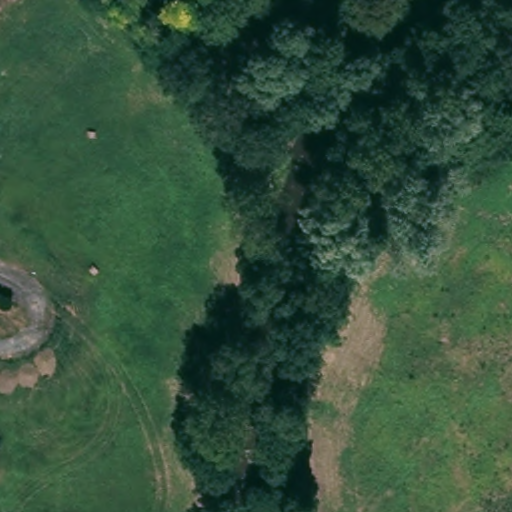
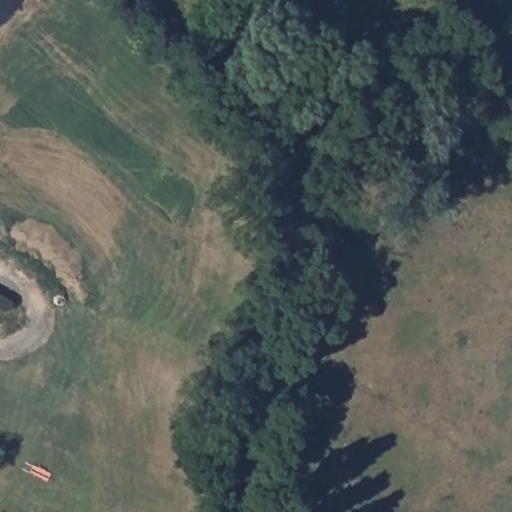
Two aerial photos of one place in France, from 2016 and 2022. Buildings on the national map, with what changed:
[]

